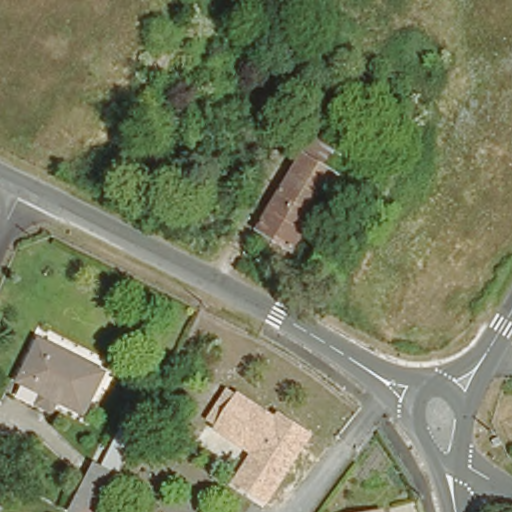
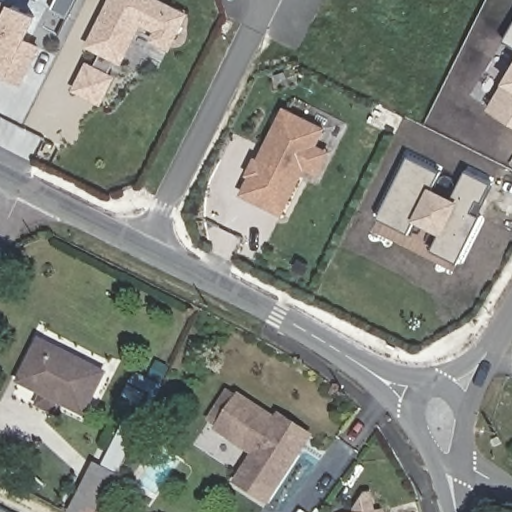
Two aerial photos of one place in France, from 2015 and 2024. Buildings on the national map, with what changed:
new [(35,15),(24,38),(38,45),(20,81),(4,75),(6,70),(0,67),(0,0),(6,0),(14,4),(35,15)]
new [(53,0),(61,0),(59,3),(53,0)]
new [(159,28),(140,20),(120,59),(116,57),(107,74),(112,75),(100,100),(76,87),(88,64),(95,67),(103,50),(89,43),(108,6),(111,0),(160,0),(185,12),(169,45),(154,37),(159,28)]
new [(505,40),(512,27),(512,44),(505,40)]
new [(490,109),(512,72),(512,122),(490,109)]
new [(285,214),(242,193),(251,175),(247,174),(255,159),(258,160),(285,108),(327,130),(285,214)]
new [(321,175),(308,168),(320,146),(332,152),(321,175)]
new [(471,210),(480,215),(456,262),(430,249),(440,229),(415,217),(407,232),(377,217),(408,154),(440,170),(431,189),(450,198),(465,168),(491,181),(481,201),(476,199),(471,210)]
demolished [(281,240),(245,217),(281,160),(317,182),(281,240)]
unchanged [(35,401),(39,391),(17,380),(36,339),(100,371),(80,411),(54,398),(50,408),(35,401)]
unchanged [(219,391),(275,418),(288,425),(286,428),(274,458),(254,449),(215,431),(217,422),(205,416),(219,391)]
new [(254,449),(274,458),(286,428),(288,425),(275,418),(278,412),(312,435),(266,506),(231,483),(254,449)]
unchanged [(71,505),(95,461),(120,473),(99,512),(84,512),(71,505)]

